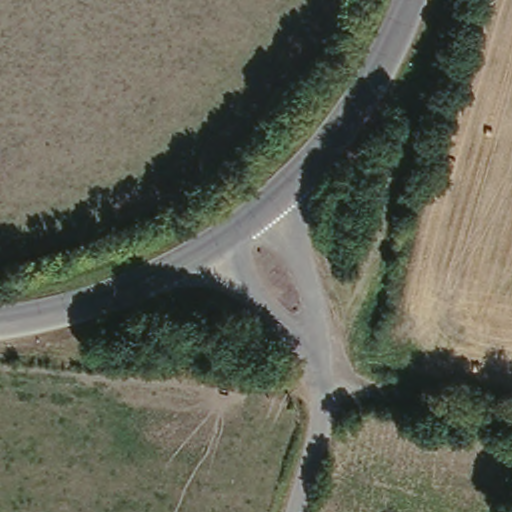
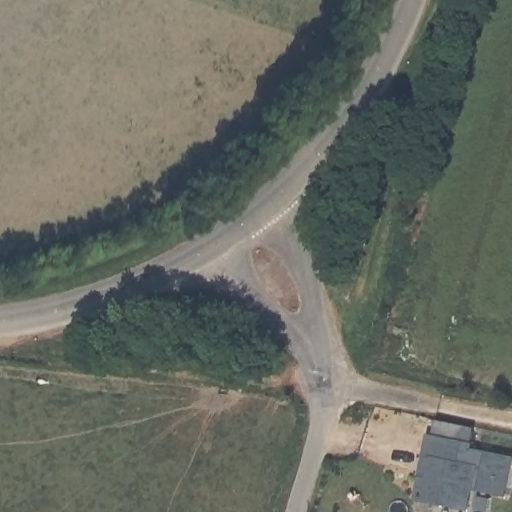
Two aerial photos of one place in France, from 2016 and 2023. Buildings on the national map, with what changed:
new [(430,437),(435,438),(437,424),(479,430),(476,451),(506,456),(499,497),(476,492),(473,511),(417,500),(421,478),(426,460),(430,437)]

